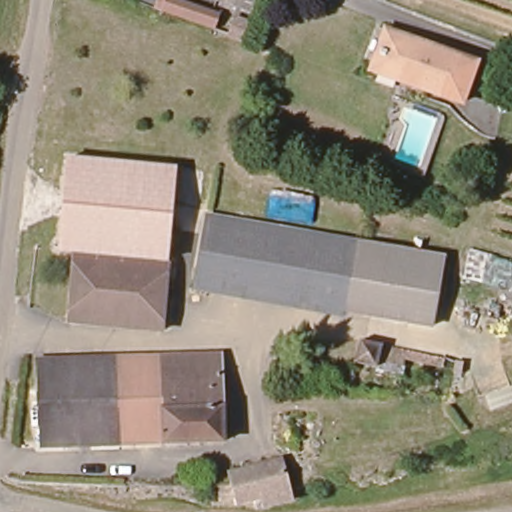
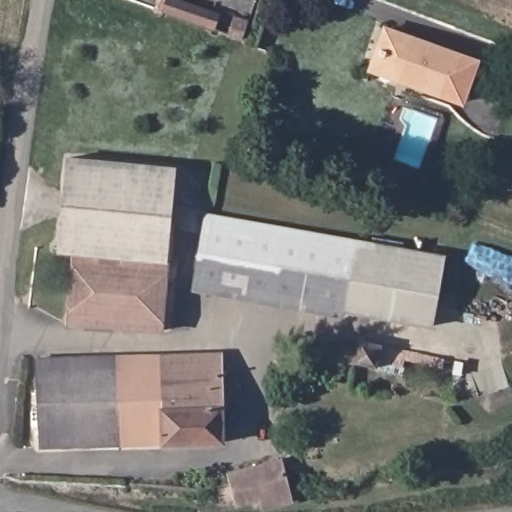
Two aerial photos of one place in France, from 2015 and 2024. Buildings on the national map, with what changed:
unchanged [(166,0),(191,0),(223,11),(218,26),(164,6),(166,0)]
unchanged [(224,34),(230,15),(247,20),(240,39),(224,34)]
unchanged [(406,80),(408,74),(374,60),(388,24),(452,48),(475,56),(459,99),(437,91),(406,80)]
unchanged [(141,259),(76,254),(54,253),(64,158),(176,169),(166,260),(141,259)]
unchanged [(342,317),(194,284),(210,211),(357,244),(343,310),(342,317)]
unchanged [(357,244),(443,263),(428,329),(343,310),(357,244)]
unchanged [(163,325),(151,325),(73,319),(76,254),(141,259),(166,260),(163,325)]
unchanged [(444,357),(443,366),(439,366),(406,359),(403,369),(399,368),(378,363),(378,364),(376,369),(355,365),(356,359),(357,356),(359,342),(360,340),(444,357)]
unchanged [(137,408),(155,406),(154,358),(220,356),(223,441),(139,444),(137,408)]
unchanged [(41,449),(37,362),(154,358),(155,406),(137,408),(139,444),(41,449)]
unchanged [(221,455),(239,452),(244,468),(282,461),(289,501),(253,506),(253,499),(229,502),(221,455)]

